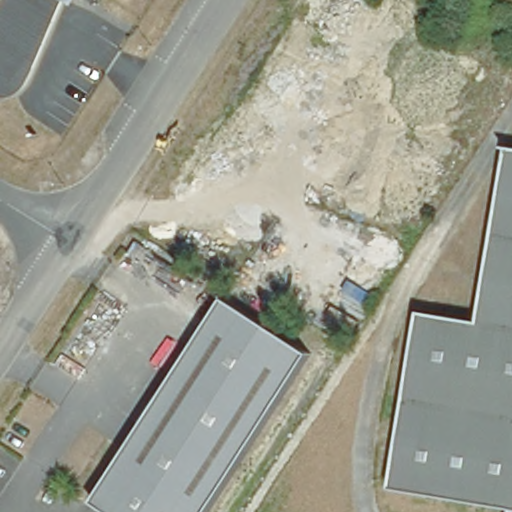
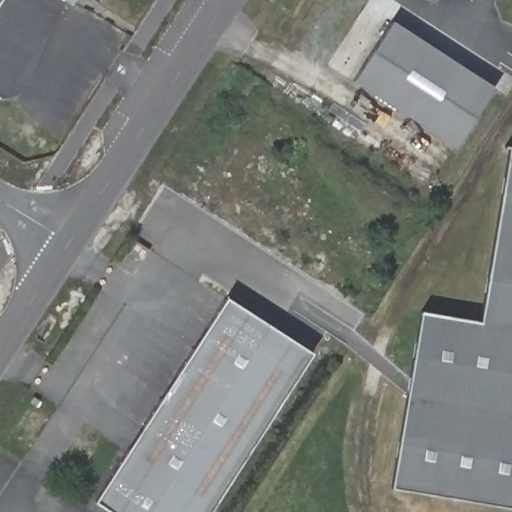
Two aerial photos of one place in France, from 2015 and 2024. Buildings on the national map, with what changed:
unchanged [(66,1),(44,55),(40,65),(34,75),(29,81),(23,87),(16,92),(2,98),(0,99),(0,17),(11,0),(65,0),(66,1)]
unchanged [(95,3),(90,0),(97,0),(95,3)]
new [(392,21),(494,87),(455,148),(353,82),(392,21)]
unchanged [(391,493),(420,311),(481,322),(509,148),(512,149),(512,511),(391,493)]
unchanged [(315,354),(208,512),(120,512),(95,495),(230,296),(315,354)]

